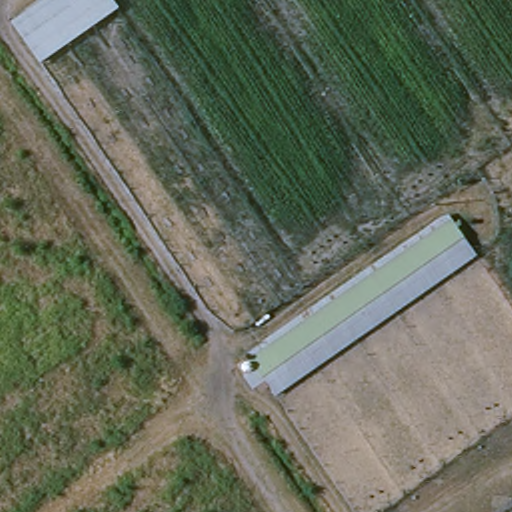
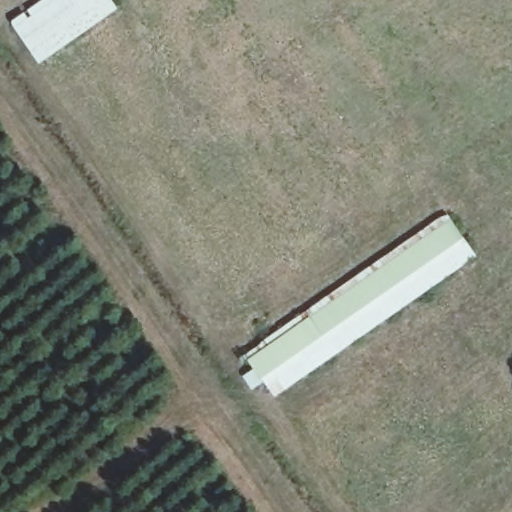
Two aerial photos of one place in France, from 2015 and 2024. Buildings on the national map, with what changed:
unchanged [(34,0),(112,0),(116,6),(38,61),(6,19),(34,0)]
unchanged [(453,224),(468,214),(479,229),(466,238),(475,254),(274,395),(243,354),(443,210),(453,224)]

